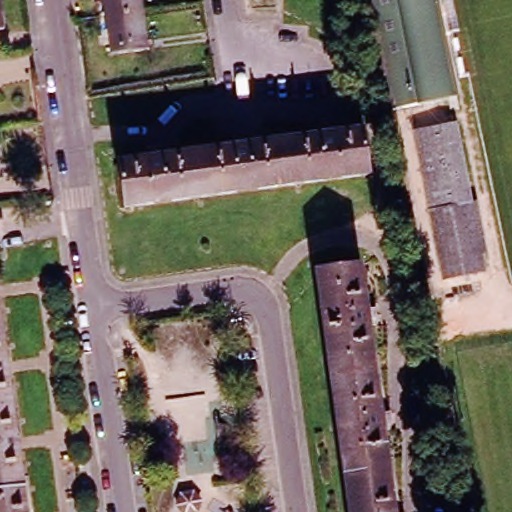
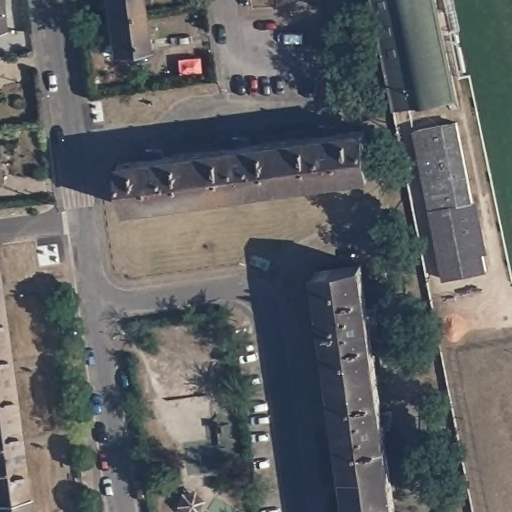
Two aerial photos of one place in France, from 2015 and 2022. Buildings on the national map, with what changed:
unchanged [(0,30),(0,0),(8,0),(12,28),(0,30)]
unchanged [(139,7),(105,12),(103,0),(137,0),(139,7)]
unchanged [(434,25),(450,100),(392,112),(370,0),(429,0),(434,25)]
unchanged [(429,0),(441,0),(460,98),(450,100),(434,25),(429,0)]
unchanged [(144,46),(110,50),(105,12),(139,7),(144,46)]
unchanged [(489,247),(484,249),(487,267),(479,268),(442,275),(413,129),(457,120),(472,196),(478,195),(489,247)]
unchanged [(117,164),(144,160),(142,150),(158,150),(159,158),(230,148),(229,137),(245,138),(246,146),(319,136),(317,126),(333,126),(334,134),(362,130),(367,175),(122,207),(117,164)]
unchanged [(0,175),(0,163),(2,174),(0,175)]
unchanged [(354,264),(360,310),(370,308),(370,325),(362,326),(374,413),(385,412),(385,428),(375,428),(387,512),(343,512),(310,270),(354,264)]
unchanged [(29,512),(0,512),(0,295),(29,512)]

